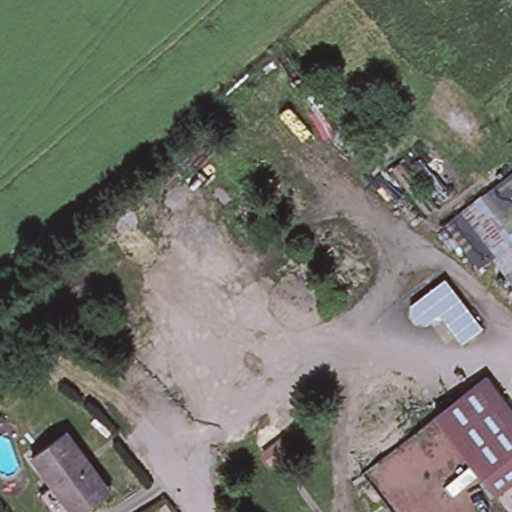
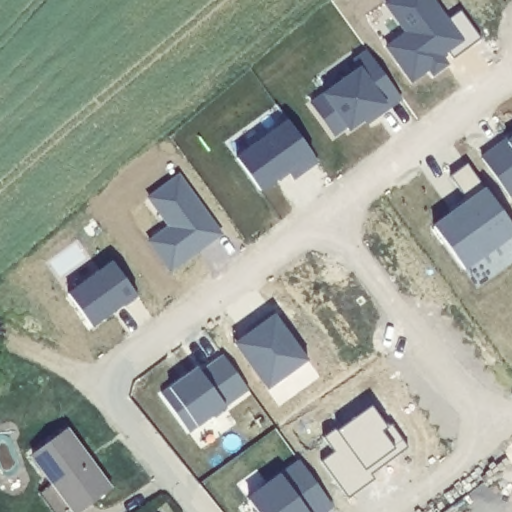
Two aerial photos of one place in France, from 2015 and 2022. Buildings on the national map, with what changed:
new [(436,0),(450,20),(462,11),(483,40),(455,59),(449,52),(444,57),(451,65),(433,76),(429,72),(413,83),(388,46),(407,33),(386,3),(390,0),(436,0)]
new [(359,69),(353,59),(368,49),(403,100),(367,124),(365,121),(350,130),(349,127),(334,136),(312,101),(359,69)]
new [(289,121),(319,162),(295,180),(291,174),(263,191),(239,157),(289,121)]
new [(512,197),(483,159),(512,139),(512,197)]
new [(224,235),(173,272),(149,241),(169,227),(148,196),(180,172),(224,235)]
new [(512,225),(512,239),(469,270),(436,226),(487,189),(512,225)]
new [(113,262),(139,296),(94,327),(69,292),(113,262)]
demolished [(441,313),(427,323),(416,321),(411,315),(412,305),(433,288),(446,278),(483,325),(469,336),(463,341),(441,313)]
new [(276,315),(309,361),(269,389),(237,341),(276,315)]
new [(198,367),(201,372),(223,356),(249,393),(191,435),(161,393),(198,367)]
demolished [(512,487),(498,497),(437,419),(489,378),(512,409),(512,487)]
new [(334,452),(326,437),(373,406),(388,427),(393,425),(409,447),(371,475),(374,479),(349,498),(322,460),(334,452)]
unchanged [(89,463),(86,466),(104,491),(74,512),(70,512),(29,453),(65,428),(89,463)]
unchanged [(299,453),(281,468),(273,457),(291,444),(299,453)]
new [(299,462),(334,506),(326,512),(259,512),(248,497),(299,462)]

